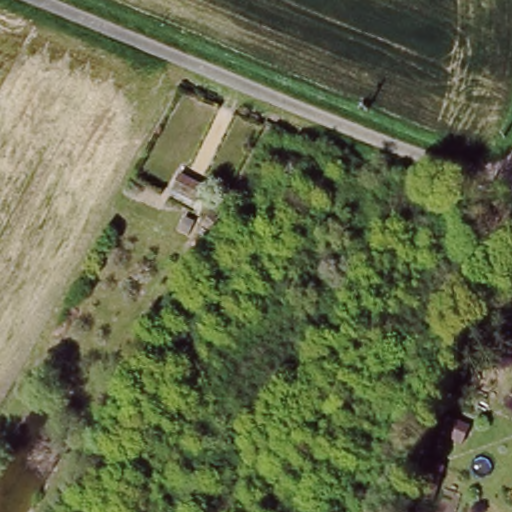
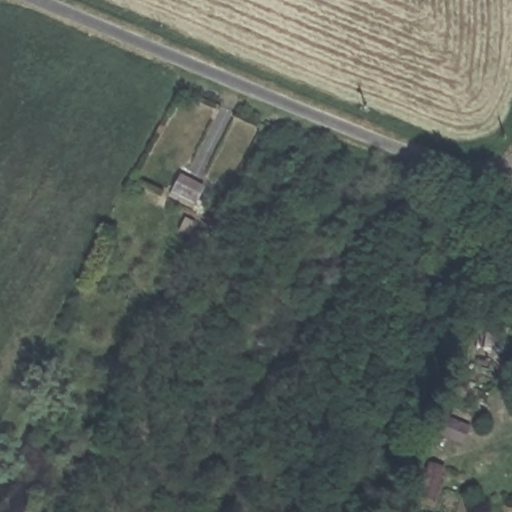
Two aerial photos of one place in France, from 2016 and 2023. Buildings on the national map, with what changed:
unchanged [(203,188),(196,202),(172,189),(179,176),(203,188)]

